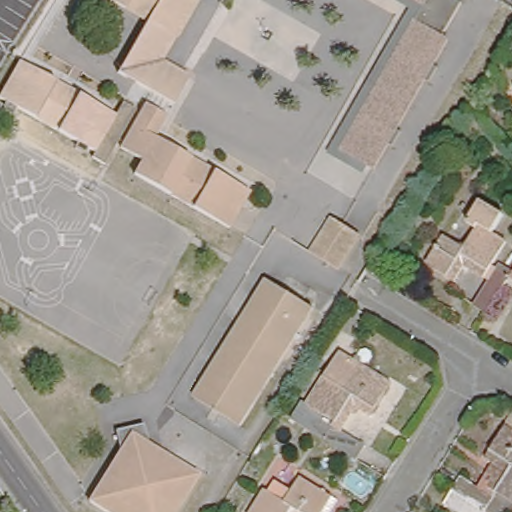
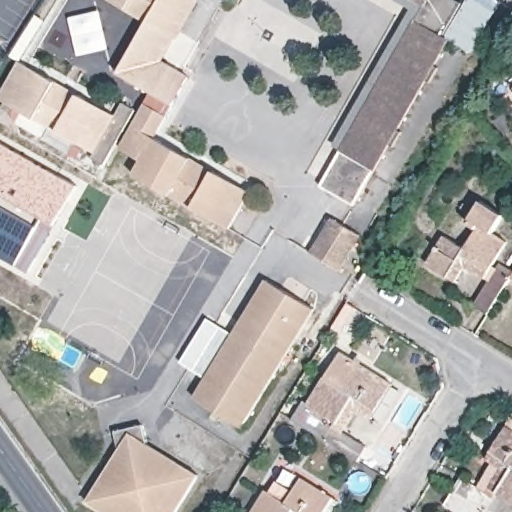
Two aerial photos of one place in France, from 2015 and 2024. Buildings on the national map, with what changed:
unchanged [(189,76),(173,105),(118,74),(147,21),(109,0),(198,0),(163,61),(189,76)]
unchanged [(459,2),(441,32),(449,39),(374,167),(333,145),(412,7),(400,0),(455,0),(459,2)]
unchanged [(116,145),(109,157),(0,97),(0,96),(23,59),(118,115),(126,105),(140,112),(120,147),(116,145)]
unchanged [(251,192),(229,228),(134,174),(143,160),(120,147),(140,112),(144,104),(167,117),(155,138),(191,159),(213,171),(251,192)]
new [(55,226),(46,220),(18,270),(0,262),(0,141),(78,184),(55,226)]
unchanged [(489,280),(486,278),(464,265),(454,281),(427,264),(444,235),(464,248),(477,228),(468,222),(482,200),(504,215),(494,232),(508,241),(493,266),(498,269),(491,281),(489,280)]
unchanged [(361,235),(343,267),(314,249),(333,220),(361,235)]
unchanged [(498,269),(511,277),(488,314),(474,306),(489,280),(498,269)]
unchanged [(510,278),(511,277),(512,275),(512,279),(510,278)]
unchanged [(242,427),(194,398),(267,280),(314,309),(242,427)]
unchanged [(372,418),(358,409),(344,432),(367,446),(359,460),(292,419),(303,401),(308,404),(341,351),(394,383),(372,418)]
unchanged [(103,512),(87,502),(119,450),(114,431),(143,424),(148,444),(199,476),(177,512),(103,512)]
unchanged [(458,496),(467,482),(483,492),(498,468),(491,464),(512,430),(512,512),(453,512),(449,510),(458,496)]
unchanged [(269,492),(276,480),(294,491),(302,478),(334,497),(339,501),(333,512),(252,512),(266,490),(269,492)]

